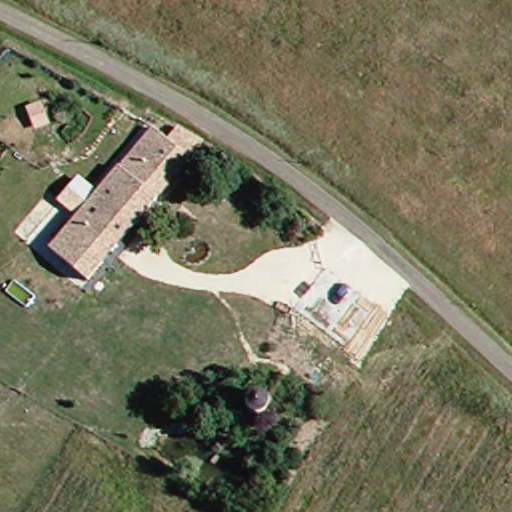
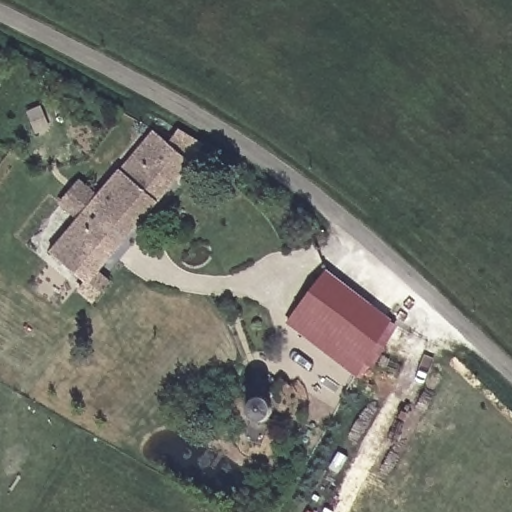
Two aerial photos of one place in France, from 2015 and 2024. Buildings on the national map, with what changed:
unchanged [(110,168),(144,129),(153,136),(164,124),(193,145),(182,159),(147,198),(82,278),(45,248),(110,168)]
new [(358,379),(287,325),(328,272),(402,327),(358,379)]
new [(254,417),(242,411),(242,397),(251,390),(262,392),(277,372),(285,381),(267,400),(268,412),(254,417)]
demolished [(255,419),(246,414),(244,403),(253,396),(261,397),(267,405),(264,414),(255,419)]

